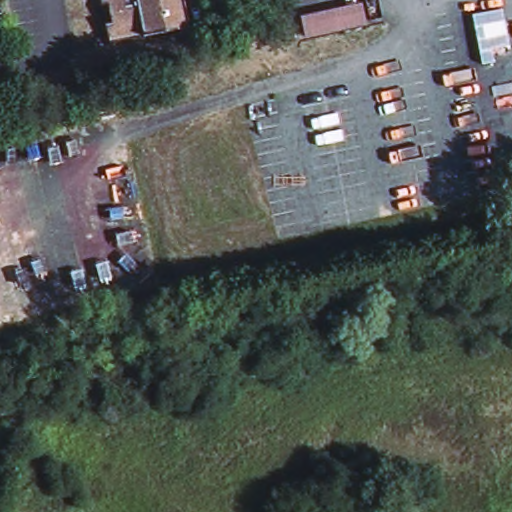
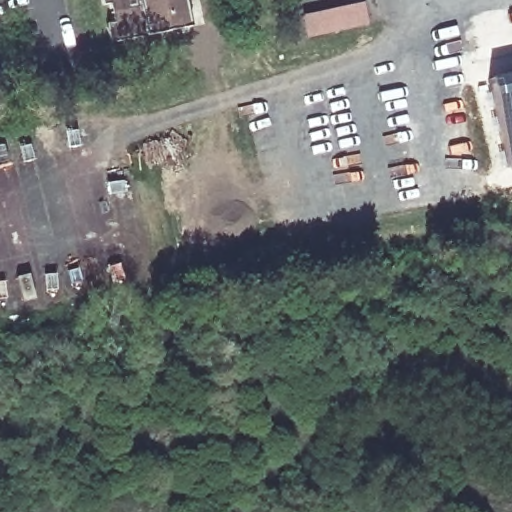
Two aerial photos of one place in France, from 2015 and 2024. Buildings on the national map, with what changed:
unchanged [(109,0),(115,0),(109,1),(109,0)]
unchanged [(117,41),(114,24),(120,22),(115,0),(192,0),(197,25),(117,41)]
unchanged [(364,1),(368,25),(306,37),(302,13),(364,1)]
new [(512,73),(512,169),(506,170),(498,133),(489,78),(512,73)]

